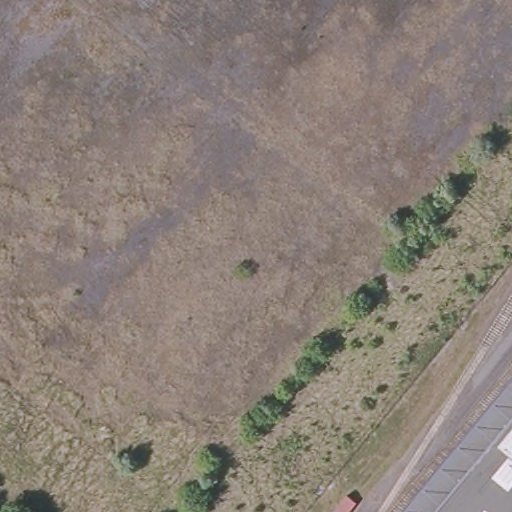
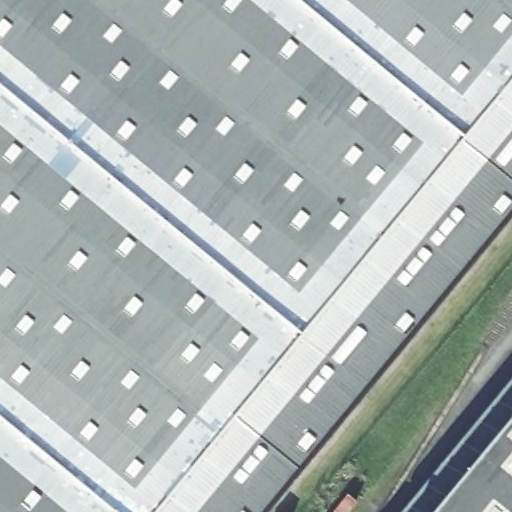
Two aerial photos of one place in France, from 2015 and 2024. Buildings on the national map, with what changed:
new [(512,208),(262,512),(0,512),(0,0),(512,0),(512,208)]
unchanged [(512,512),(435,512),(512,419),(512,512)]
unchanged [(356,502),(348,512),(333,512),(347,495),(356,502)]

